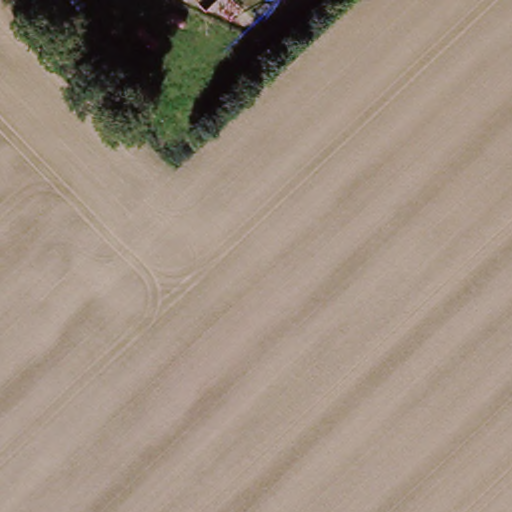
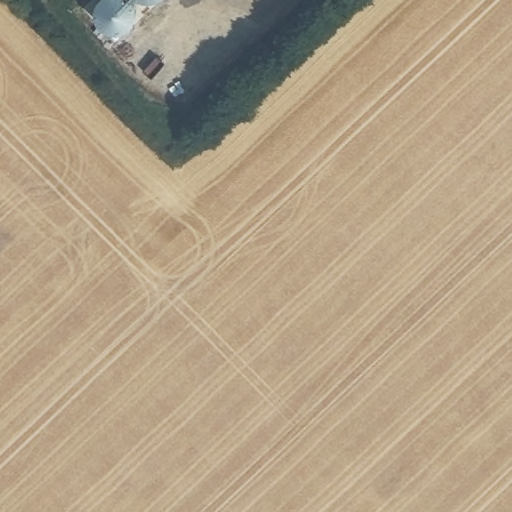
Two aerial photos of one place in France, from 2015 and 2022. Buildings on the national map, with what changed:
new [(129,0),(132,2),(134,9),(133,17),(130,24),(124,29),(116,31),(107,31),(100,26),(95,20),(94,14),(95,6),(98,0),(129,0)]
new [(147,3),(140,1),(137,0),(159,0),(157,1),(147,3)]

